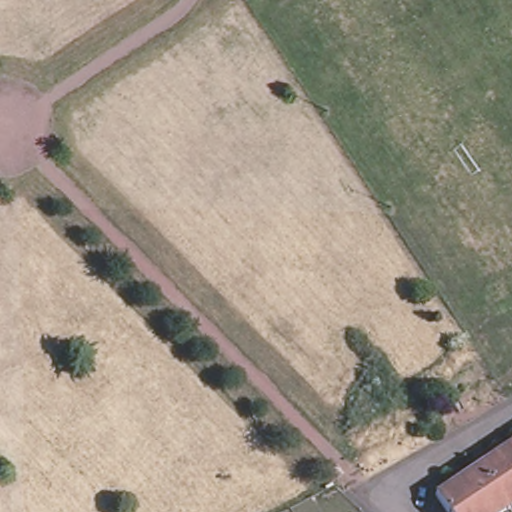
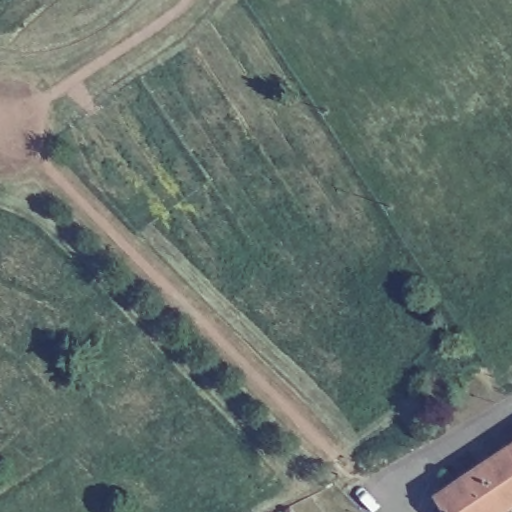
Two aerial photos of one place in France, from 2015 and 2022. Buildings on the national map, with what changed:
unchanged [(511,510),(481,466),(512,445),(512,509),(511,510)]
unchanged [(508,512),(446,512),(437,497),(481,466),(511,510),(508,512)]

